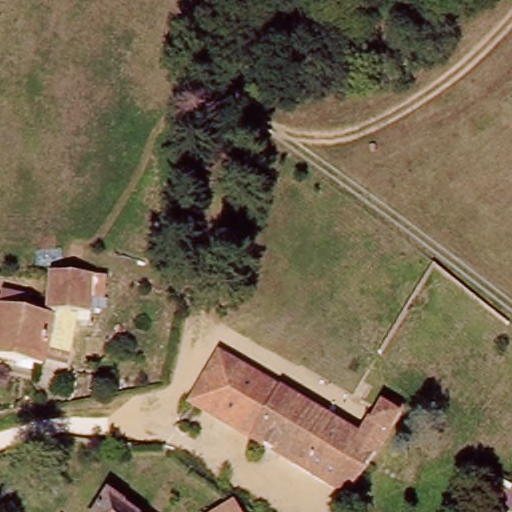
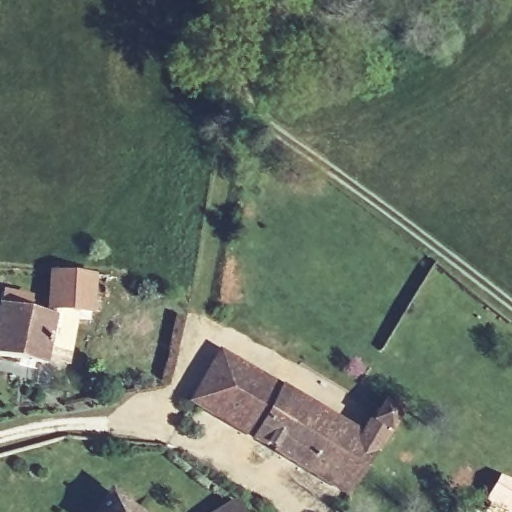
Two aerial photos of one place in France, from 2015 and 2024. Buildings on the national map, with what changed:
unchanged [(98,277),(90,321),(56,314),(57,308),(51,305),(58,271),(98,277)]
unchanged [(55,316),(45,358),(42,357),(0,349),(0,325),(5,302),(56,314),(55,316)]
unchanged [(45,358),(56,314),(90,321),(79,365),(45,358)]
unchanged [(240,435),(271,385),(312,407),(331,418),(354,430),(361,420),(366,423),(380,405),(386,408),(390,405),(400,410),(395,416),(404,422),(392,440),(382,433),(338,495),(240,435)]
unchanged [(503,512),(493,505),(512,478),(512,512),(503,512)]
unchanged [(121,512),(96,512),(105,500),(121,512)]
unchanged [(217,512),(228,505),(232,512),(217,512)]

